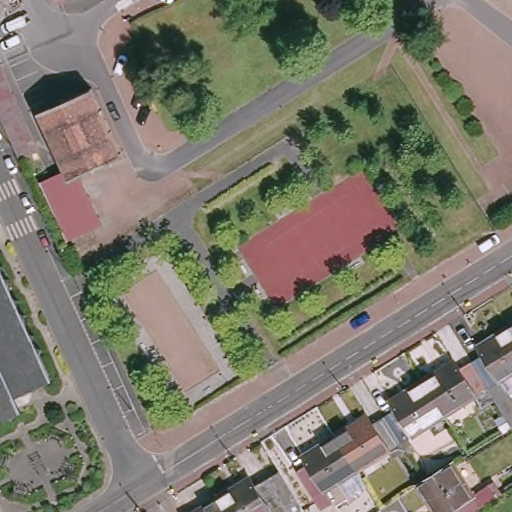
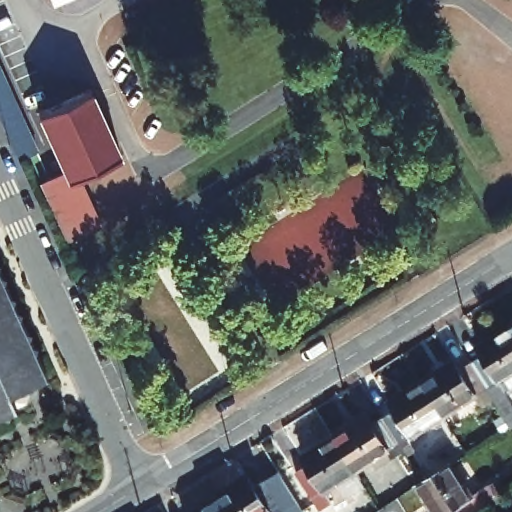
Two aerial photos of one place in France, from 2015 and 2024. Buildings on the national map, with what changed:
unchanged [(55,2),(55,0),(60,0),(55,2)]
unchanged [(40,147),(17,156),(9,137),(0,119),(0,60),(15,90),(40,147)]
unchanged [(91,88),(121,155),(108,161),(80,174),(70,178),(66,170),(39,111),(91,88)]
unchanged [(66,170),(70,178),(80,174),(105,233),(66,254),(35,184),(66,170)]
unchanged [(37,354),(50,383),(33,390),(35,397),(30,404),(20,408),(22,411),(0,421),(0,274),(12,299),(37,354)]
unchanged [(512,389),(512,417),(492,386),(477,361),(488,354),(484,348),(512,330),(512,374),(505,378),(512,389)]
unchanged [(492,386),(449,414),(429,382),(461,362),(465,368),(477,361),(492,386)]
unchanged [(390,416),(402,409),(397,402),(429,382),(449,414),(405,441),(390,416)]
unchanged [(405,441),(362,468),(342,437),(375,416),(379,423),(390,416),(405,441)]
unchanged [(302,471),(315,462),(312,456),(342,437),(362,468),(331,487),(339,500),(325,509),(302,471)]
unchanged [(445,512),(442,512),(436,502),(430,506),(410,474),(416,470),(443,454),(462,486),(482,475),(489,486),(480,491),(445,512)]
unchanged [(257,489),(279,476),(295,502),(279,512),(226,512),(221,503),(254,483),(257,489)]
unchanged [(226,512),(207,512),(221,503),(226,512)]

